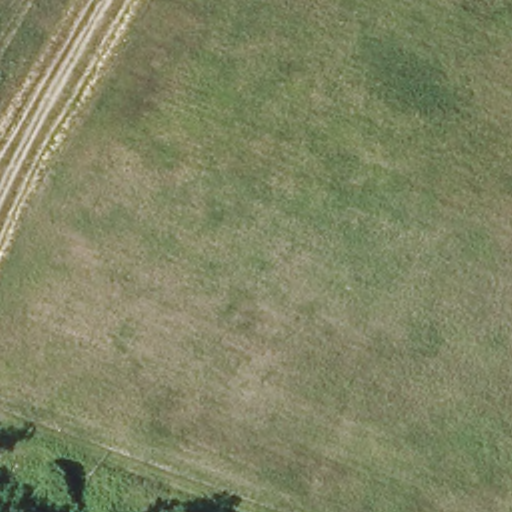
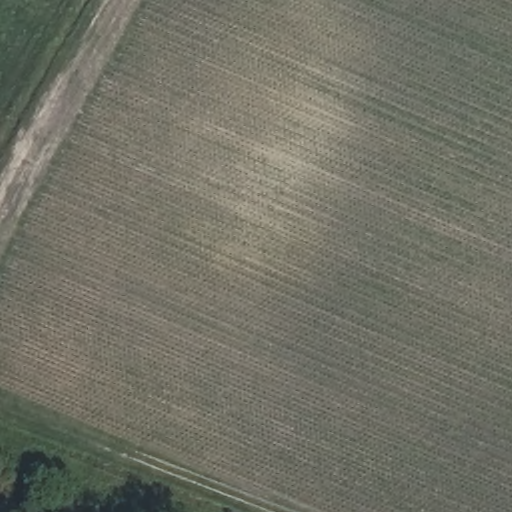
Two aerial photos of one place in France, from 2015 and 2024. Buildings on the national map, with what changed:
[]

